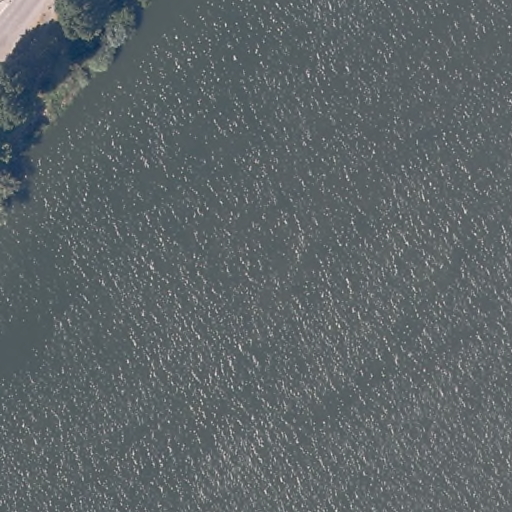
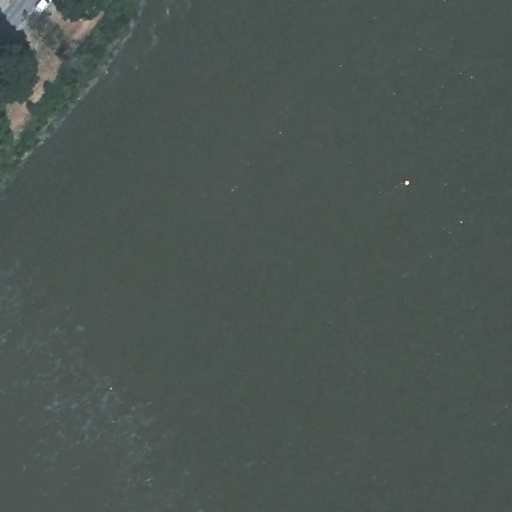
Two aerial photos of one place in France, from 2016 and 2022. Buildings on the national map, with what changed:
[]

